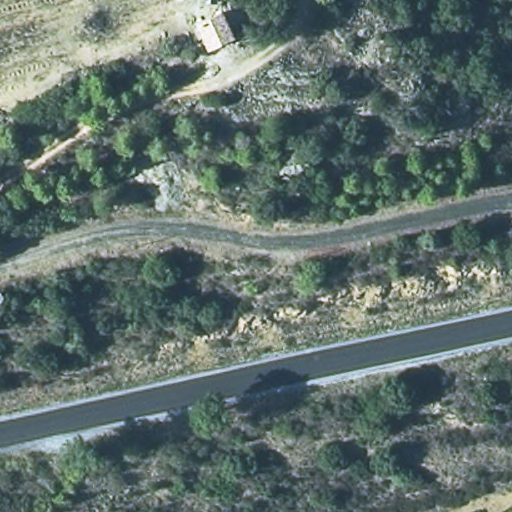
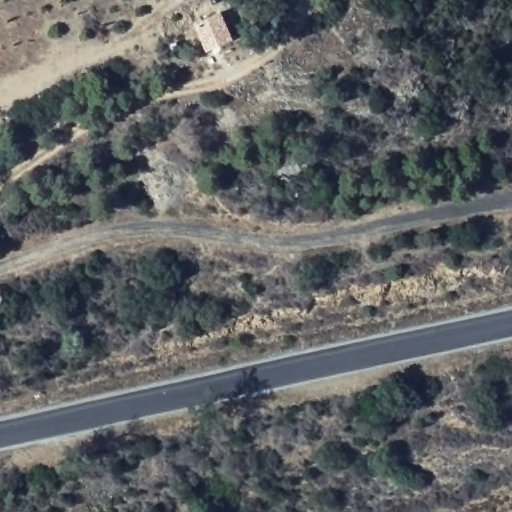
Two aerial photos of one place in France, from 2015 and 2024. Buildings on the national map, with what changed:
unchanged [(234,7),(245,34),(208,50),(197,24),(234,7)]

